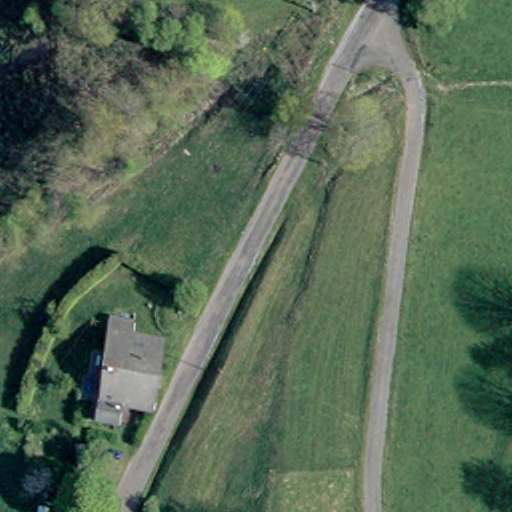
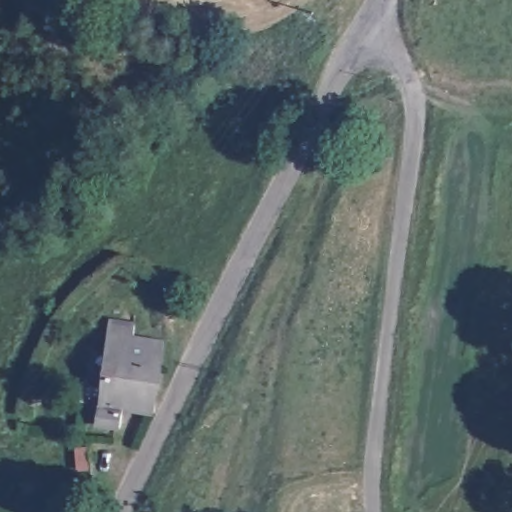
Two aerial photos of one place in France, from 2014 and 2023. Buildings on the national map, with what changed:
unchanged [(96,366),(109,366),(114,332),(143,333),(143,341),(159,342),(157,365),(153,400),(126,396),(123,411),(104,410),(104,388),(93,387),(96,366)]
unchanged [(84,473),(67,470),(70,448),(86,451),(84,473)]

